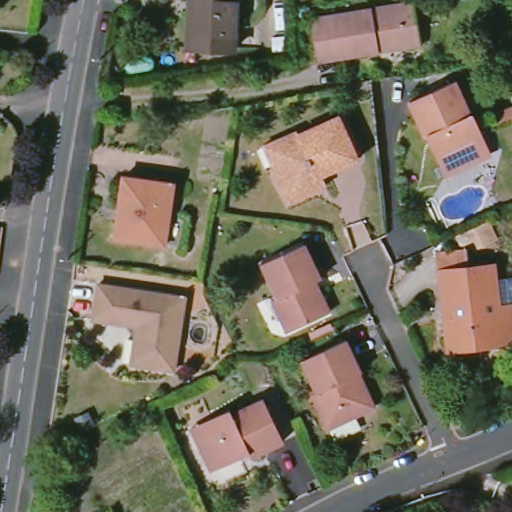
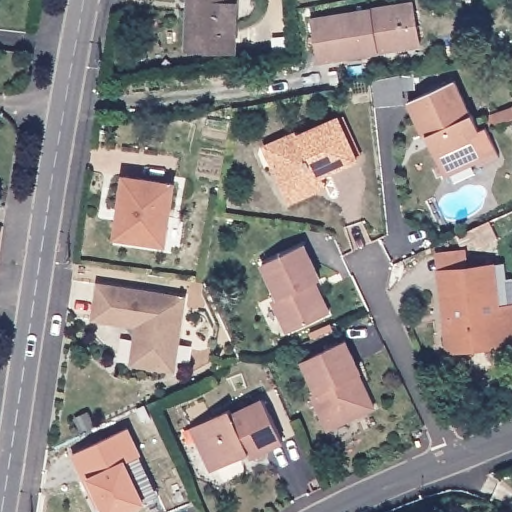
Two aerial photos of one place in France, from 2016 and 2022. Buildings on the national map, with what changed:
unchanged [(189,0),(236,0),(233,51),(188,49),(189,0)]
unchanged [(416,5),(421,46),(343,59),(321,62),(314,21),(319,20),(416,5)]
unchanged [(479,162),(447,179),(433,150),(436,149),(431,138),(426,140),(426,141),(409,106),(453,84),(469,118),(474,117),(481,132),(493,156),(479,162)]
unchanged [(286,206),(269,167),(261,151),(266,148),(294,135),(296,139),(335,120),(336,121),(340,118),(359,159),(355,162),(356,163),(321,180),(324,188),(313,193),(286,206)]
unchanged [(123,195),(126,176),(176,183),(175,191),(166,245),(116,237),(123,195)]
unchanged [(493,222),(501,244),(482,252),(479,244),(462,247),(460,243),(452,246),(449,240),(493,222)]
unchanged [(324,314),(289,331),(275,298),(280,296),(264,262),(308,242),(323,277),(317,280),(331,312),(324,314)]
unchanged [(512,306),(512,347),(448,355),(443,320),(437,272),(464,268),(494,264),(499,307),(512,306)]
unchanged [(168,374),(146,371),(135,369),(137,357),(139,342),(131,331),(95,325),(100,289),(188,302),(179,364),(178,375),(168,374)]
unchanged [(324,426),(310,398),(314,395),(300,364),(343,344),(358,376),(354,378),(358,388),(360,386),(372,409),(343,424),(326,432),(324,426)]
unchanged [(231,417),(261,403),(281,444),(248,460),(245,453),(238,456),(239,460),(216,471),(208,469),(195,442),(191,432),(209,422),(228,414),(231,417)]
new [(124,512),(104,512),(89,478),(84,481),(73,453),(130,427),(142,455),(129,461),(148,501),(124,512)]

